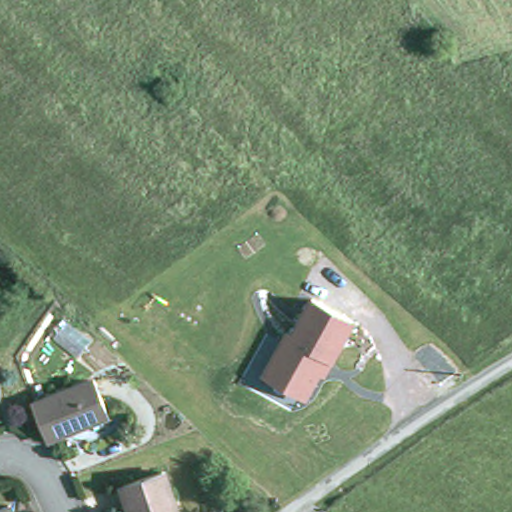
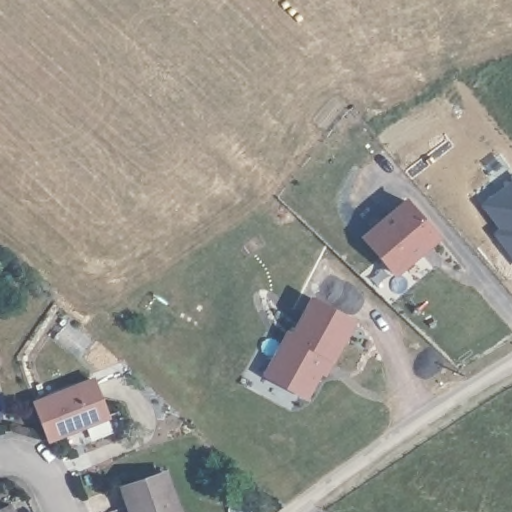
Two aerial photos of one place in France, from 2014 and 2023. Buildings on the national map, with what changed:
new [(441,236),(396,276),(360,235),(406,195),(441,236)]
unchanged [(308,292),(359,318),(309,403),(261,375),(308,292)]
unchanged [(33,421),(27,402),(92,382),(102,414),(74,423),(76,427),(38,438),(33,421)]
unchanged [(172,512),(123,512),(115,488),(156,472),(172,512)]
unchanged [(4,502),(7,512),(0,512),(0,504),(4,502)]

